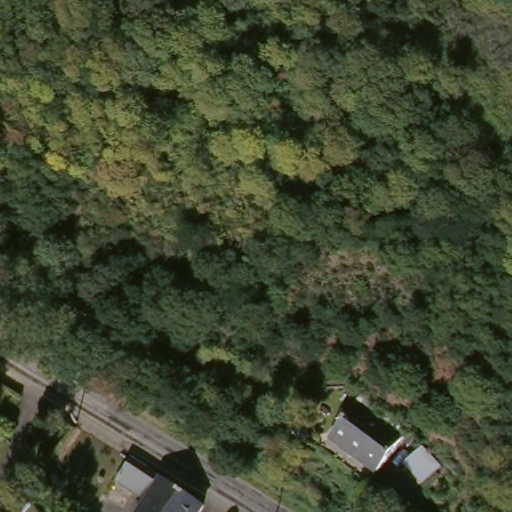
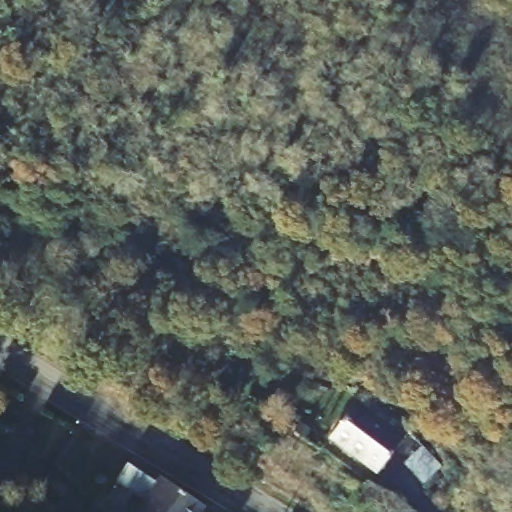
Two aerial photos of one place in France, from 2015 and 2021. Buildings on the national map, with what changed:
unchanged [(361,407),(406,439),(382,473),(337,441),(361,407)]
unchanged [(208,512),(149,512),(156,502),(129,483),(141,464),(210,510),(208,512)]

